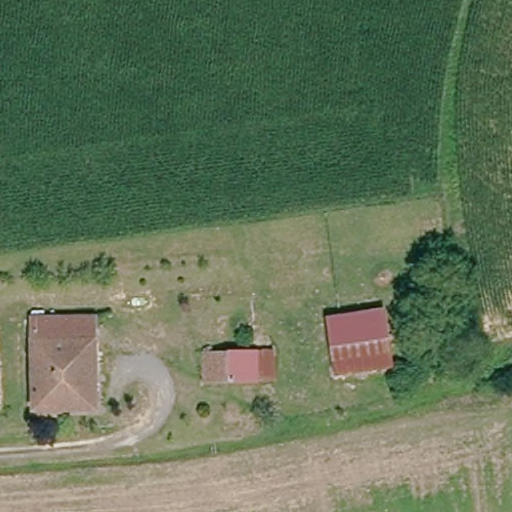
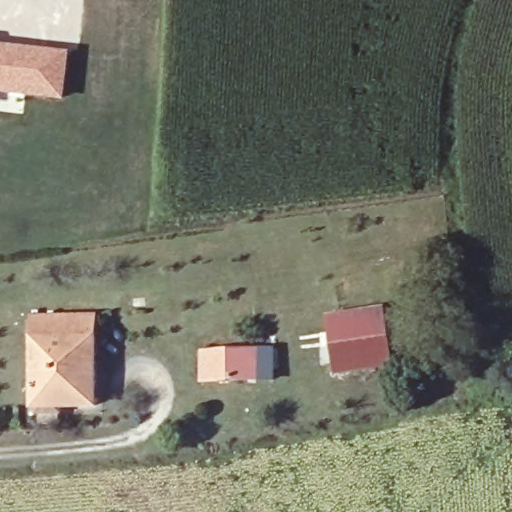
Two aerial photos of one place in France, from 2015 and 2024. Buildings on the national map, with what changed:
new [(71,51),(64,103),(26,99),(23,115),(0,112),(0,42),(71,51)]
unchanged [(332,339),(305,343),(300,307),(323,303),(385,294),(391,338),(394,366),(335,372),(332,339)]
unchanged [(95,409),(36,410),(33,315),(93,313),(95,409)]
unchanged [(272,350),(271,383),(203,381),(204,348),(272,350)]

